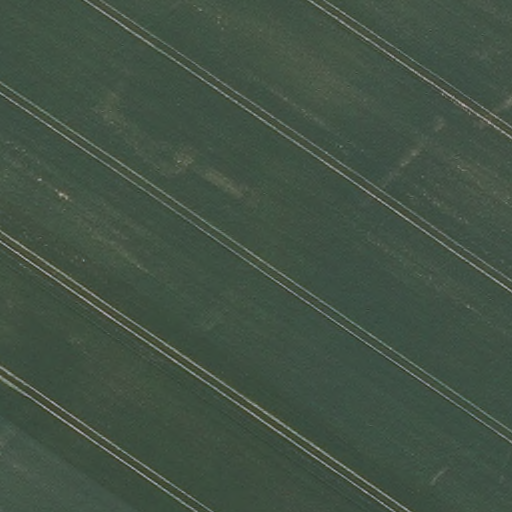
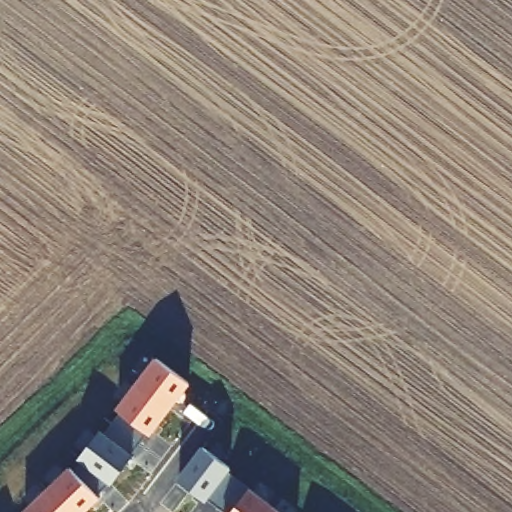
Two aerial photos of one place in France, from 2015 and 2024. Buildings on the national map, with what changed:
new [(24,510),(70,466),(74,470),(81,462),(78,459),(102,428),(105,431),(120,411),(116,408),(155,357),(191,383),(152,435),(147,431),(132,451),(135,454),(112,484),(107,481),(97,493),(102,497),(86,512),(25,512),(24,510)]
new [(202,445),(232,467),(230,471),(251,487),(285,512),(229,512),(210,497),(207,501),(177,478),(202,445)]

